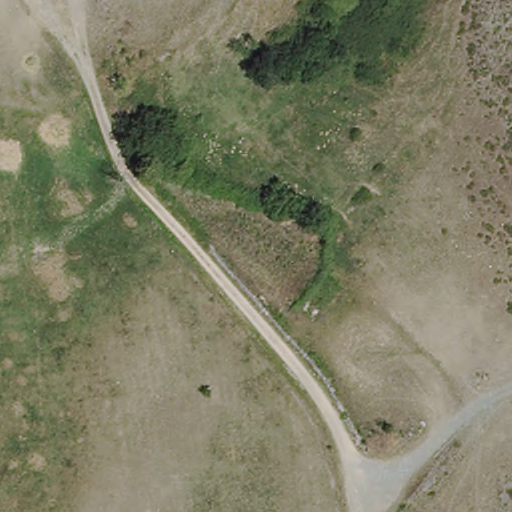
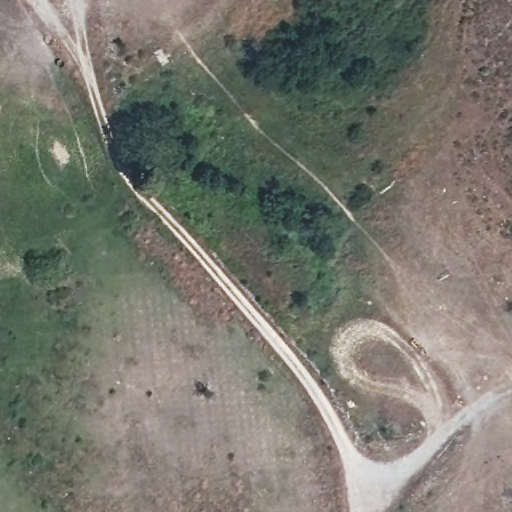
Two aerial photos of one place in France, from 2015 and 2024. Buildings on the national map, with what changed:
unchanged [(139,129),(139,117),(153,117),(154,129),(139,129)]

